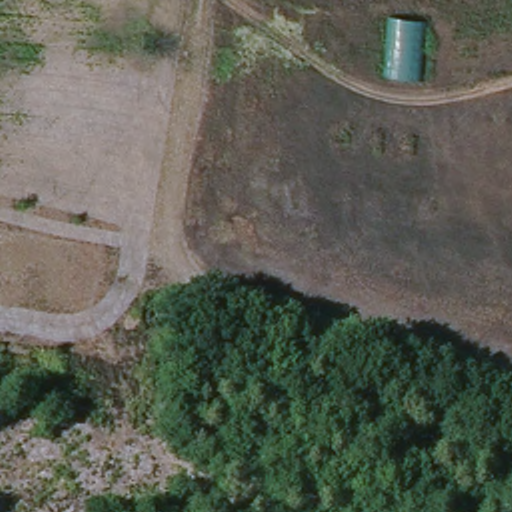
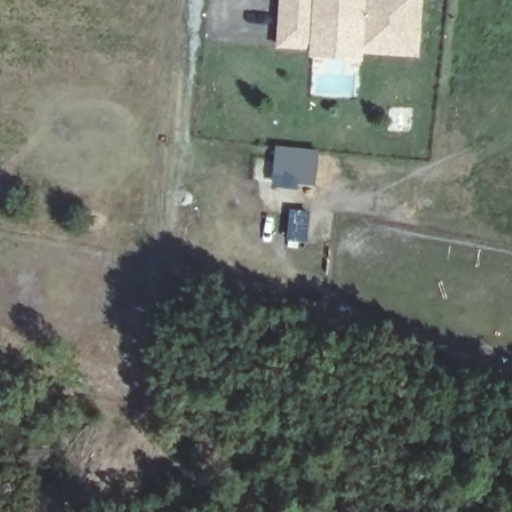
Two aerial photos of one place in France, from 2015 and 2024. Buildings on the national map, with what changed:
new [(358,22),(318,19),(317,49),(277,48),(280,0),(424,0),(421,56),(358,53),(358,22)]
new [(363,61),(310,57),(311,49),(317,49),(318,19),(358,22),(358,53),(365,53),(363,61)]
demolished [(390,19),(419,23),(418,81),(386,80),(390,19)]
new [(274,182),(277,147),(320,152),(317,186),(274,182)]

